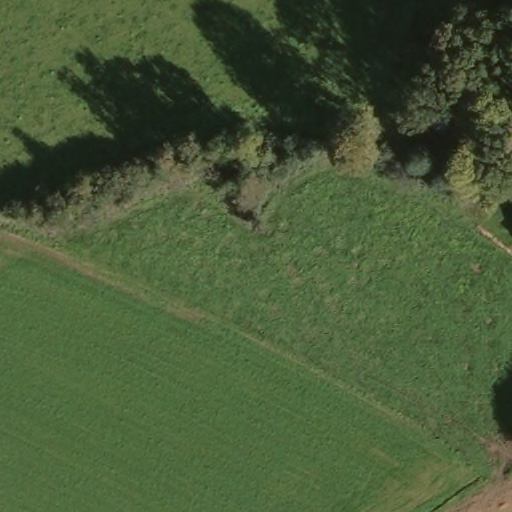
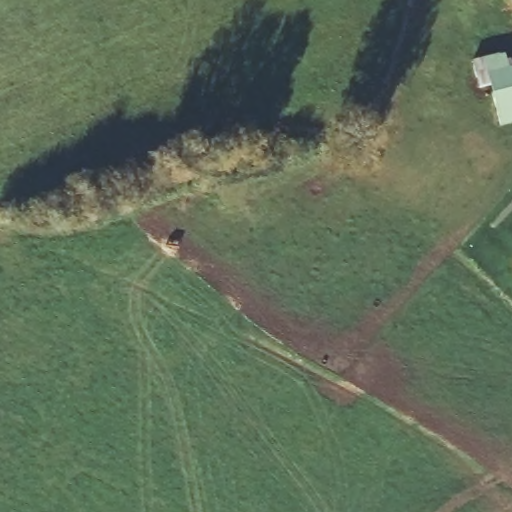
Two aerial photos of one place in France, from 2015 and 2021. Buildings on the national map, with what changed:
new [(509,70),(512,69),(512,124),(501,127),(490,86),(479,89),(471,62),(504,54),(509,70)]

